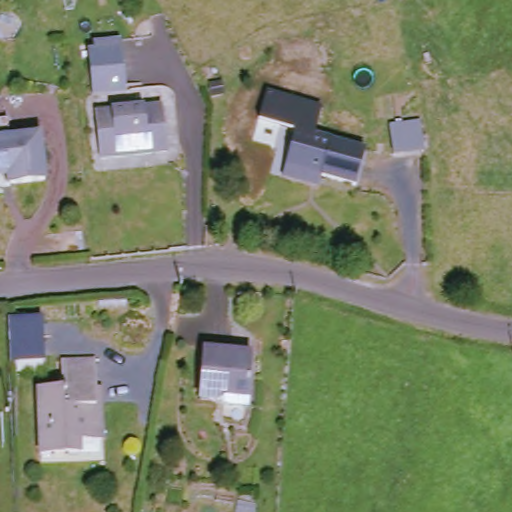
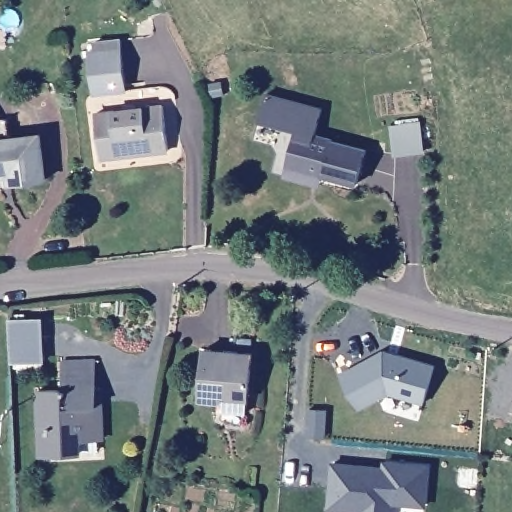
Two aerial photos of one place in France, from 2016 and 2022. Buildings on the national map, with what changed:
unchanged [(94,95),(93,83),(89,46),(122,43),(126,81),(127,92),(94,95)]
new [(297,130),(260,120),(267,93),(322,108),(315,134),(297,130)]
unchanged [(163,106),(168,151),(101,160),(96,114),(163,106)]
unchanged [(15,119),(17,139),(46,136),(52,181),(16,185),(15,176),(0,178),(0,121),(15,119)]
unchanged [(422,122),(426,150),(397,153),(393,126),(422,122)]
unchanged [(285,177),(288,167),(297,130),(334,139),(333,141),(367,149),(360,184),(324,175),(322,186),(285,177)]
unchanged [(42,320),(42,360),(12,362),(10,321),(42,320)]
unchanged [(208,349),(257,352),(253,398),(224,396),(224,399),(205,398),(208,349)]
new [(342,373),(385,349),(435,364),(422,403),(387,394),(359,409),(342,373)]
unchanged [(100,409),(100,420),(108,419),(109,441),(87,442),(87,454),(47,455),(47,390),(70,389),(69,373),(69,362),(101,360),(101,371),(102,409),(100,409)]
new [(383,466),(384,460),(430,463),(427,508),(394,504),(393,512),(355,512),(327,509),(333,461),(383,466)]

